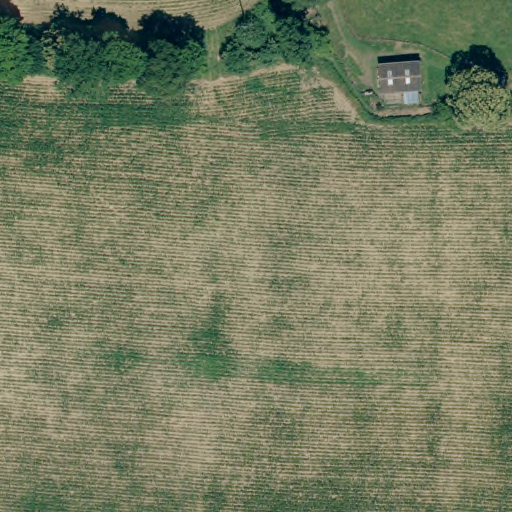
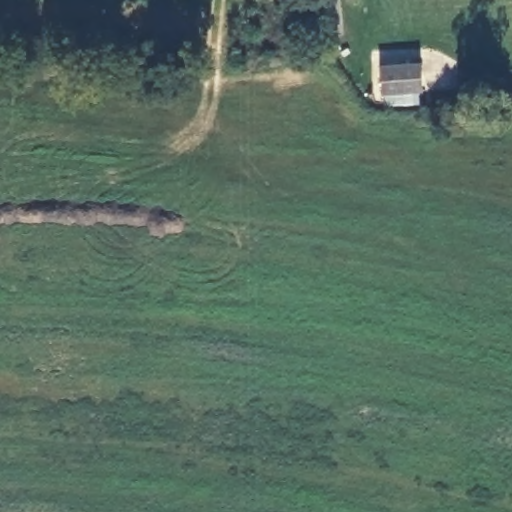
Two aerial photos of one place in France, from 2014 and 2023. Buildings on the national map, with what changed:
unchanged [(414,100),(373,101),(370,72),(413,71),(414,100)]

